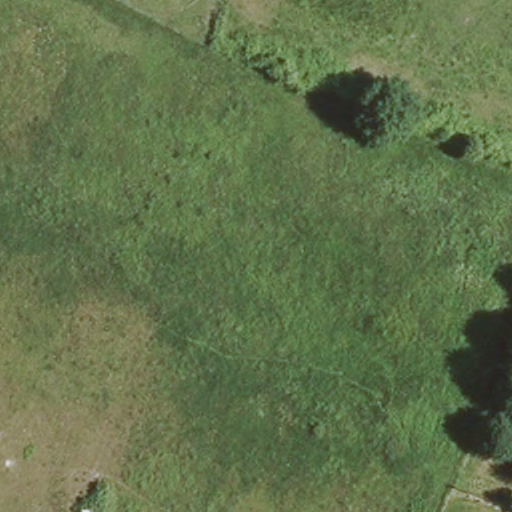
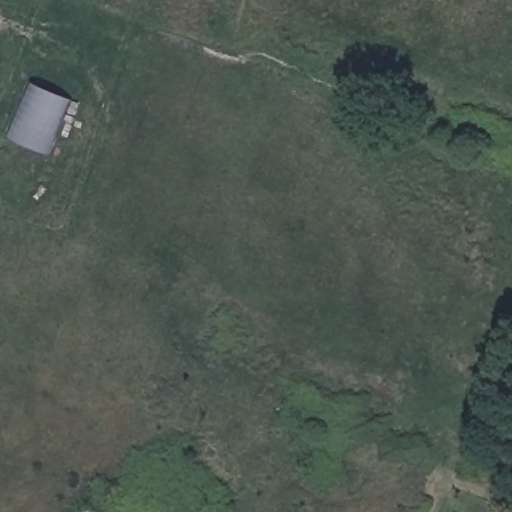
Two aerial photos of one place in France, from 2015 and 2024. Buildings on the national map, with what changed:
new [(33,83),(69,98),(47,152),(11,136),(33,83)]

